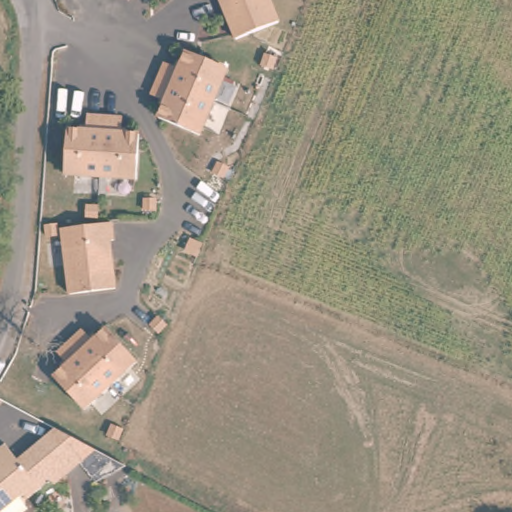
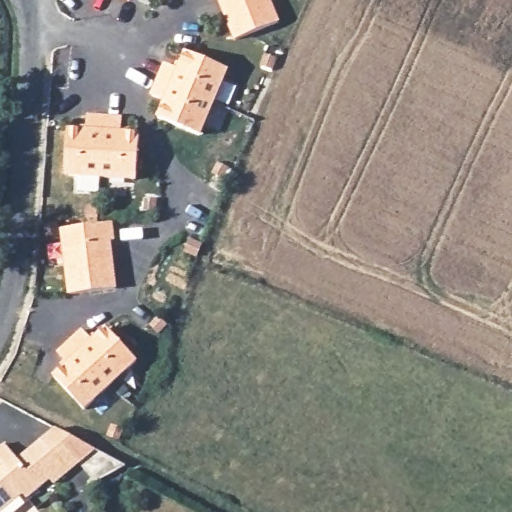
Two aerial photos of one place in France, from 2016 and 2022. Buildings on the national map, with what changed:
unchanged [(280,22),(232,41),(217,0),(271,0),(280,22)]
unchanged [(226,72),(199,136),(157,120),(166,102),(151,96),(164,65),(177,71),(185,55),(226,72)]
unchanged [(136,180),(65,175),(67,129),(86,130),(87,115),(123,118),(122,133),(136,134),(136,180)]
unchanged [(116,241),(112,242),(117,289),(68,295),(61,228),(114,222),(116,241)]
unchanged [(137,363),(84,413),(51,377),(64,365),(56,351),(82,328),(91,340),(105,326),(137,363)]
unchanged [(125,464),(96,482),(81,462),(68,471),(46,443),(46,442),(59,431),(125,464)]
unchanged [(22,460),(45,442),(46,442),(46,443),(68,471),(30,500),(27,496),(6,512),(0,512),(0,462),(0,451),(9,444),(22,460)]

